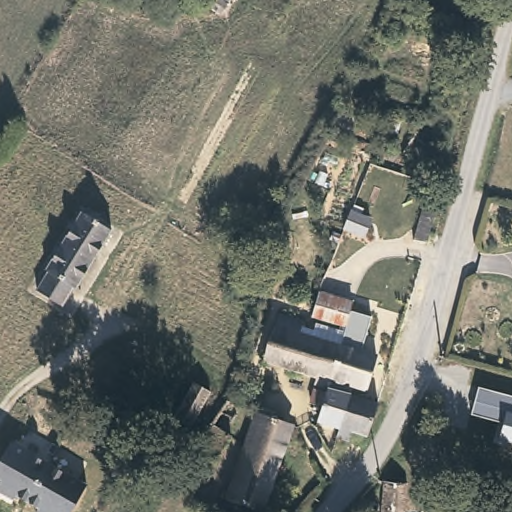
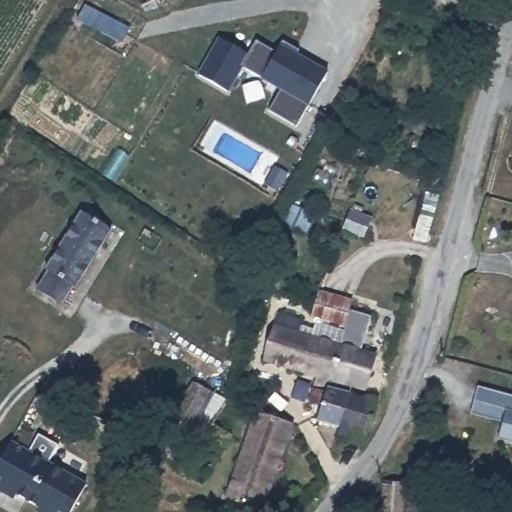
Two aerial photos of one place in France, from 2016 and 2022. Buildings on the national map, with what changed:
new [(252,56),(260,42),(280,54),(286,42),(303,51),(301,55),(317,64),(332,73),(301,128),(273,112),(285,90),(246,69),(232,94),(203,77),(223,40),(252,56)]
unchanged [(443,133),(433,167),(407,159),(418,124),(443,133)]
unchanged [(100,216),(96,222),(111,229),(76,291),(71,289),(60,307),(36,293),(48,273),(46,272),(81,213),(83,214),(86,209),(100,216)]
unchanged [(357,213),(375,220),(366,239),(349,230),(357,213)]
unchanged [(349,337),(344,349),(340,347),(346,327),(312,317),(318,290),(354,300),(350,309),(371,317),(364,341),(349,337)]
unchanged [(325,407),(313,404),(321,375),(266,358),(277,328),(281,316),(308,324),(306,335),(344,349),(325,407)]
unchanged [(333,437),(338,427),(319,422),(325,407),(344,349),(349,337),(368,343),(367,354),(381,359),(371,392),(357,389),(354,396),(375,403),(366,434),(348,429),(344,439),(333,437)]
unchanged [(213,388),(195,423),(178,414),(199,379),(213,388)]
unchanged [(498,439),(504,423),(472,414),(479,388),(512,397),(512,443),(498,439)]
unchanged [(245,451),(257,416),(290,429),(272,478),(240,466),(245,451)]
unchanged [(234,437),(214,459),(198,443),(217,422),(234,437)]
unchanged [(16,497),(13,501),(1,494),(0,494),(0,462),(6,451),(10,444),(86,486),(71,512),(36,512),(38,509),(16,497)]
unchanged [(259,510),(226,498),(240,466),(272,478),(259,510)]
unchanged [(391,483),(409,486),(404,512),(386,512),(391,483)]

